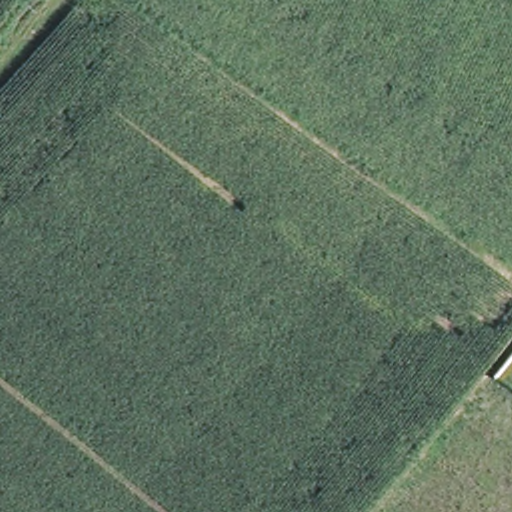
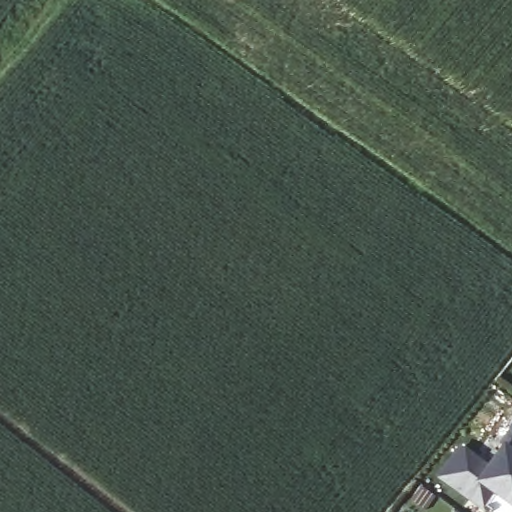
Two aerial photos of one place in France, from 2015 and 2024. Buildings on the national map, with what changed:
new [(505,451),(501,448),(510,435),(512,436),(512,508),(497,498),(487,512),(481,512),(439,483),(460,453),(490,473),(505,451)]
new [(421,487),(435,496),(425,510),(412,500),(421,487)]

